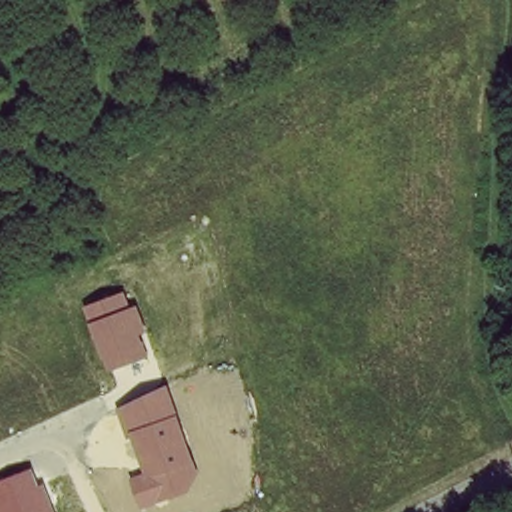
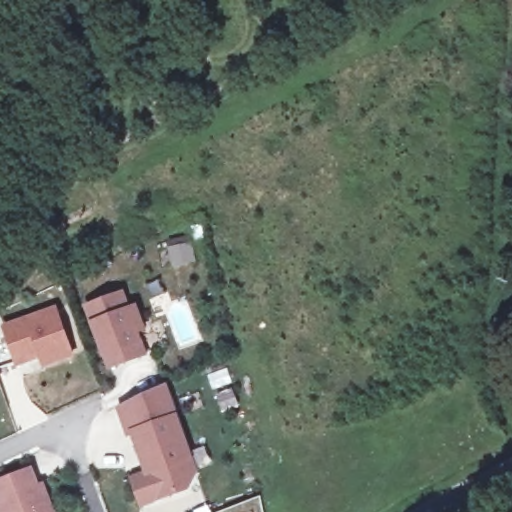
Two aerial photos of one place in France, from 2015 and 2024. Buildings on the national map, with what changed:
unchanged [(126,291),(133,307),(139,305),(148,330),(140,332),(148,355),(110,371),(85,307),(126,291)]
new [(39,361),(35,353),(13,362),(0,329),(0,326),(49,307),(66,350),(39,361)]
unchanged [(168,385),(200,472),(191,491),(142,507),(131,475),(145,470),(132,433),(128,435),(119,405),(168,385)]
unchanged [(40,485),(46,483),(56,512),(0,512),(0,480),(34,467),(40,485)]

